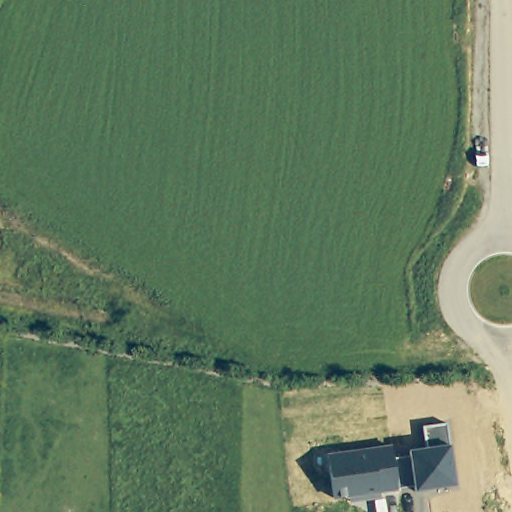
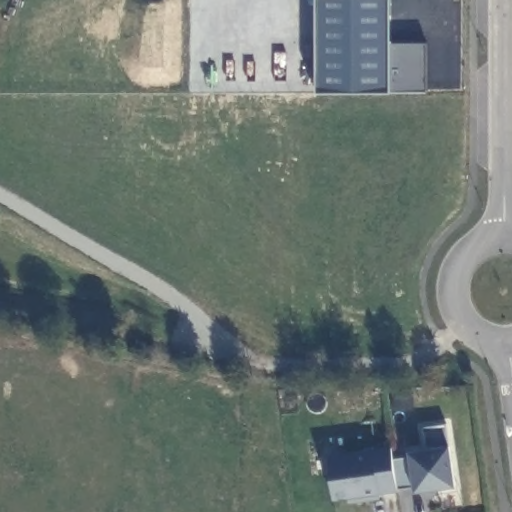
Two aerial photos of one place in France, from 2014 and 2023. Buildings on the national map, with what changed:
new [(430,41),(430,90),(320,91),(319,0),(394,0),(394,41),(430,41)]
unchanged [(391,445),(393,457),(410,455),(409,450),(425,448),(422,427),(446,422),(449,445),(455,485),(413,491),(412,485),(396,487),(397,490),(378,493),(379,498),(348,503),(347,498),(334,499),(328,454),(391,445)]

